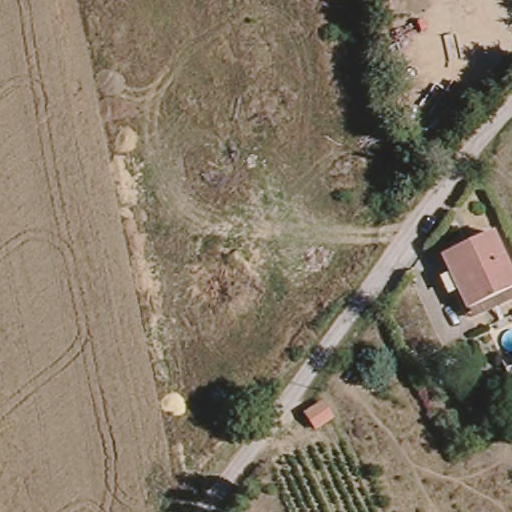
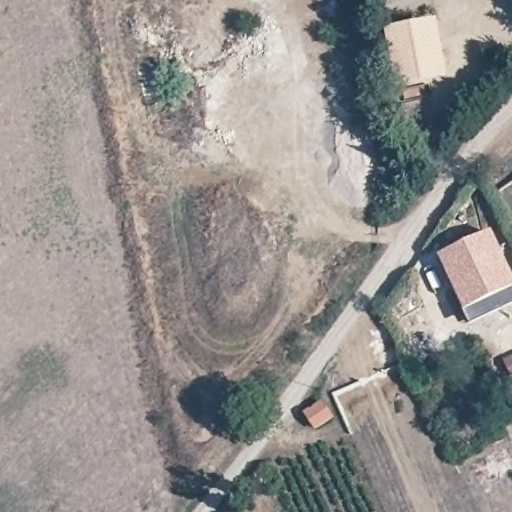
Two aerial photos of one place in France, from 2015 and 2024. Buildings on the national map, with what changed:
new [(437,19),(449,80),(397,92),(384,30),(437,19)]
unchanged [(512,282),(512,306),(473,323),(443,260),(489,237),(512,282)]
unchanged [(339,424),(321,436),(311,419),(329,407),(339,424)]

